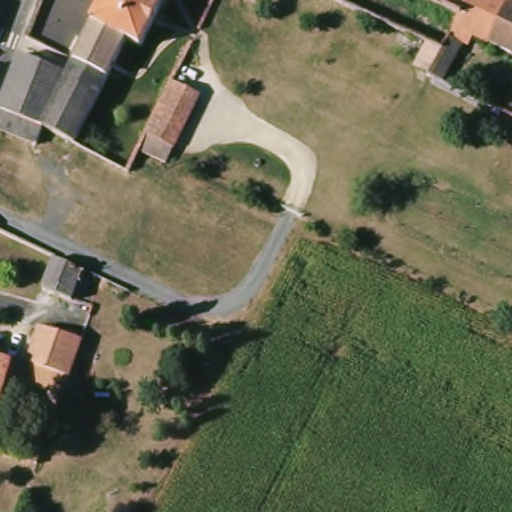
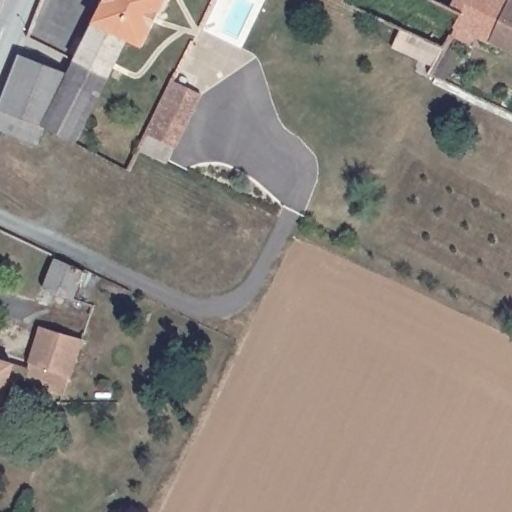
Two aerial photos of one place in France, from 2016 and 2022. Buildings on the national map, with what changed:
unchanged [(128,40),(109,77),(77,61),(109,0),(165,0),(142,46),(128,40)]
unchanged [(336,0),(347,0),(345,4),(336,0)]
unchanged [(482,43),(475,56),(464,52),(447,85),(434,79),(446,48),(432,41),(437,31),(408,17),(416,0),(502,0),(512,5),(512,59),(482,43)]
unchanged [(204,65),(186,103),(188,104),(153,175),(136,166),(167,102),(189,57),(204,65)]
unchanged [(109,77),(101,94),(109,97),(103,110),(95,106),(91,115),(76,145),(69,141),(54,134),(45,130),(36,147),(0,130),(0,111),(21,59),(71,75),(77,61),(109,77)]
unchanged [(45,291),(47,285),(55,265),(83,274),(76,295),(74,301),(45,291)]
unchanged [(42,330),(83,342),(62,404),(24,392),(21,401),(8,397),(1,416),(0,416),(0,361),(29,370),(42,330)]
unchanged [(46,454),(42,465),(30,462),(34,450),(46,454)]

